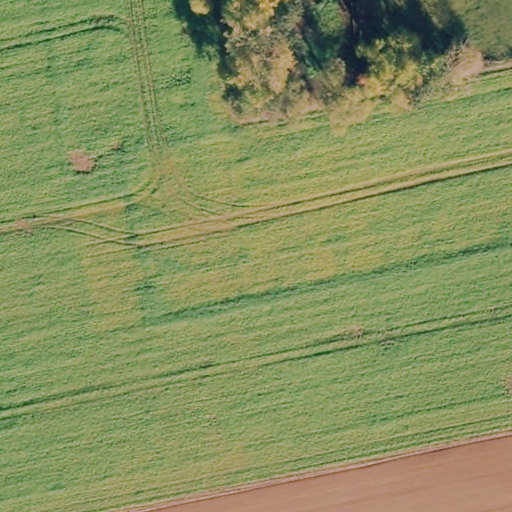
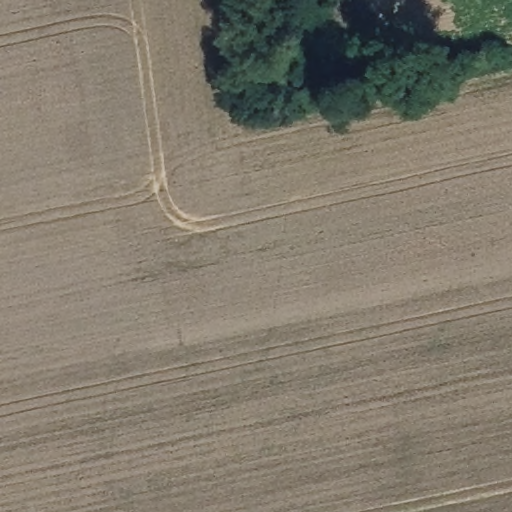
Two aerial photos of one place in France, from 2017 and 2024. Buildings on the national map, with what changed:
unchanged [(364,56),(321,65),(314,0),(357,0),(364,53),(364,56)]

